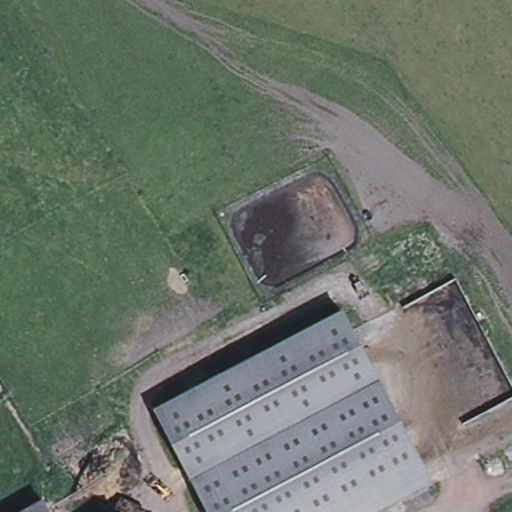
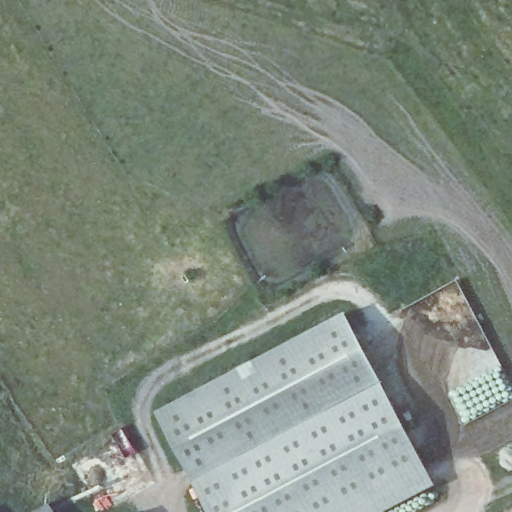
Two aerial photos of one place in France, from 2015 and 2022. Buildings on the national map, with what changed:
unchanged [(341,311),(379,382),(193,481),(156,411),(341,311)]
unchanged [(379,382),(433,483),(380,512),(209,512),(193,481),(379,382)]
unchanged [(44,504),(48,512),(30,512),(44,504)]

